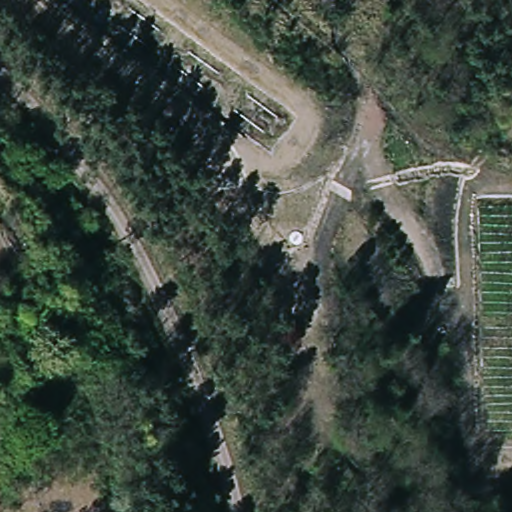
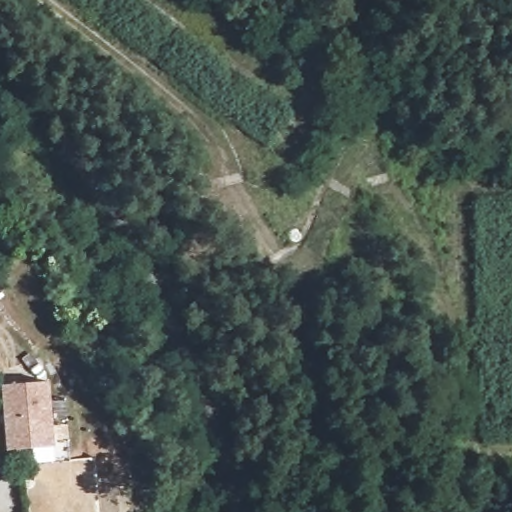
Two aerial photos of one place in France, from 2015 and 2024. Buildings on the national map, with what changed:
new [(2,381),(49,382),(48,422),(48,447),(25,447),(1,446),(2,381)]
new [(25,447),(48,447),(48,422),(65,423),(64,464),(24,463),(25,447)]

